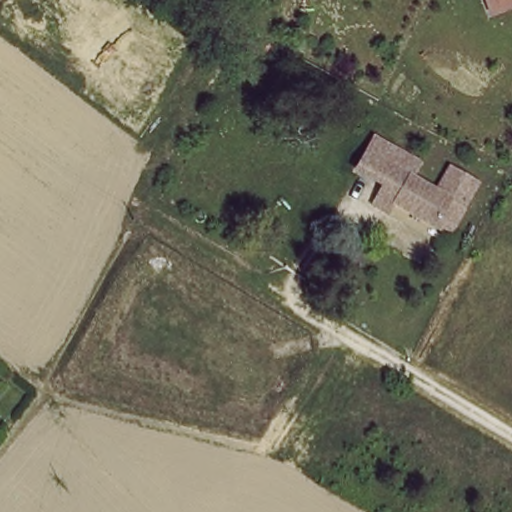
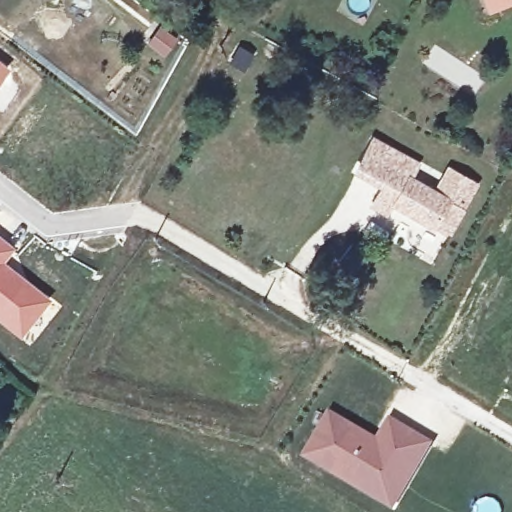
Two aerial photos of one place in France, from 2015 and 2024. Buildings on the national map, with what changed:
unchanged [(497,0),(512,0),(512,4),(500,9),(497,0)]
new [(10,66),(0,79),(0,59),(10,66)]
unchanged [(402,155),(395,170),(387,187),(358,173),(373,142),(402,155)]
unchanged [(378,207),(382,198),(387,187),(395,170),(438,191),(450,167),(477,181),(455,229),(440,222),(439,226),(398,205),(392,215),(378,207)]
new [(14,246),(4,260),(50,296),(18,336),(0,322),(0,235),(14,246)]
new [(377,438),(391,415),(435,442),(394,510),(301,456),(331,408),(377,438)]

